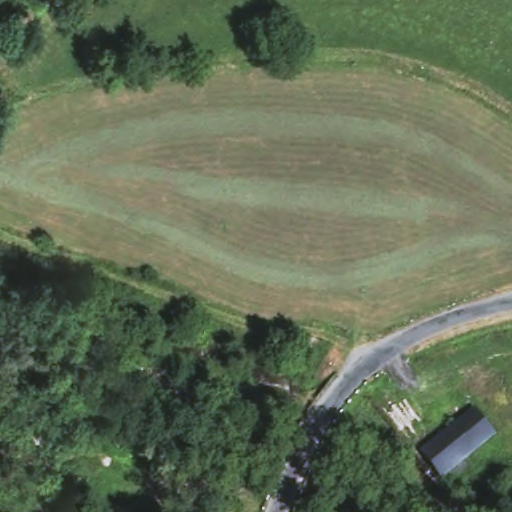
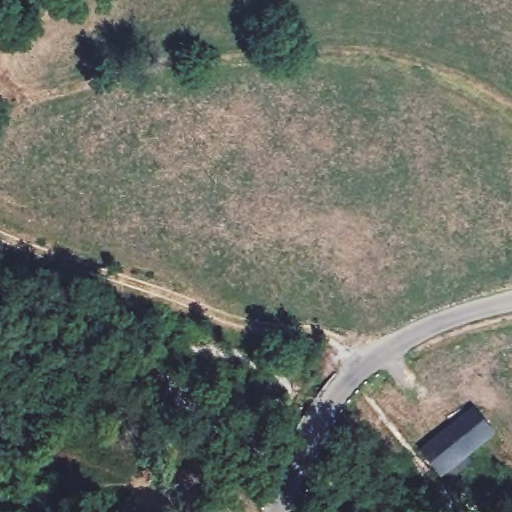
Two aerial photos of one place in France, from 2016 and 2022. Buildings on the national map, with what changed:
unchanged [(314,342),(308,375),(286,372),(291,338),(314,342)]
unchanged [(494,439),(437,486),(409,459),(470,406),(494,439)]

